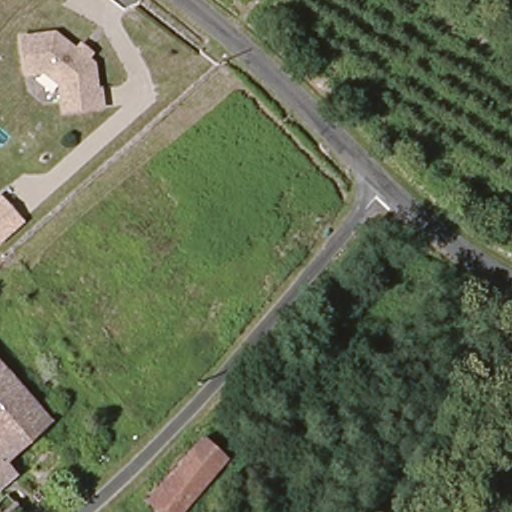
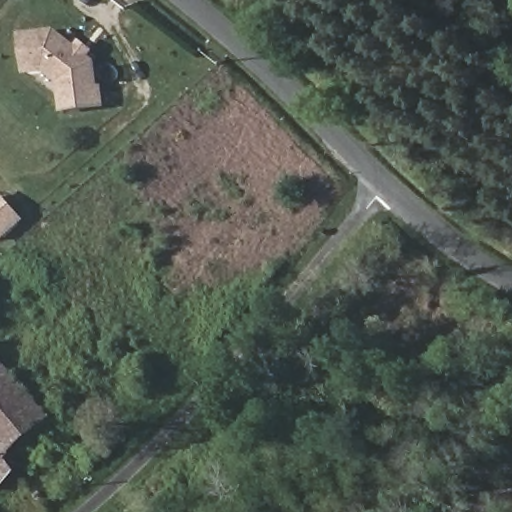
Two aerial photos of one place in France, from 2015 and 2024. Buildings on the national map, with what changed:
unchanged [(93,93),(97,92),(99,109),(60,114),(56,86),(40,74),(23,76),(18,41),(51,36),(73,54),(77,47),(87,55),(82,61),(89,67),(93,93)]
unchanged [(0,244),(0,194),(24,221),(0,244)]
unchanged [(55,423),(10,459),(21,472),(0,487),(0,357),(55,423)]
demolished [(155,495),(204,447),(223,467),(207,484),(177,512),(172,512),(155,495)]
demolished [(10,500),(13,497),(29,512),(0,512),(0,509),(10,500)]

